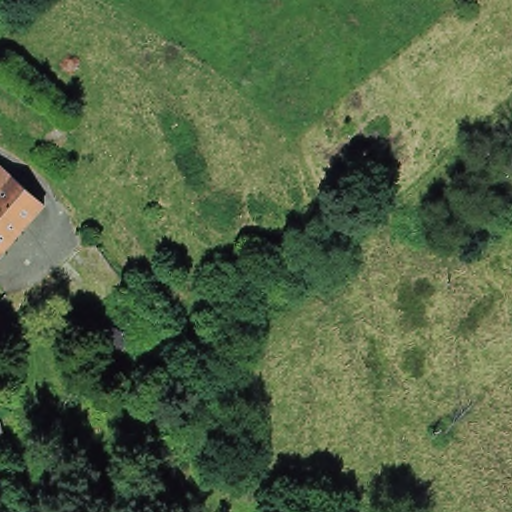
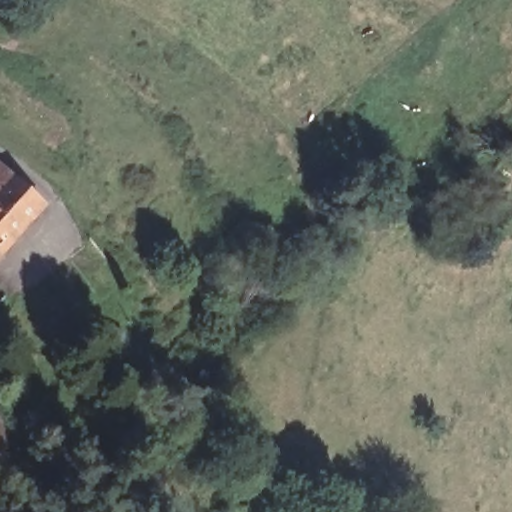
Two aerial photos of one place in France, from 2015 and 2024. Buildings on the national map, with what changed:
unchanged [(0,251),(0,157),(45,195),(0,251)]
unchanged [(13,456),(0,459),(0,404),(13,456)]

